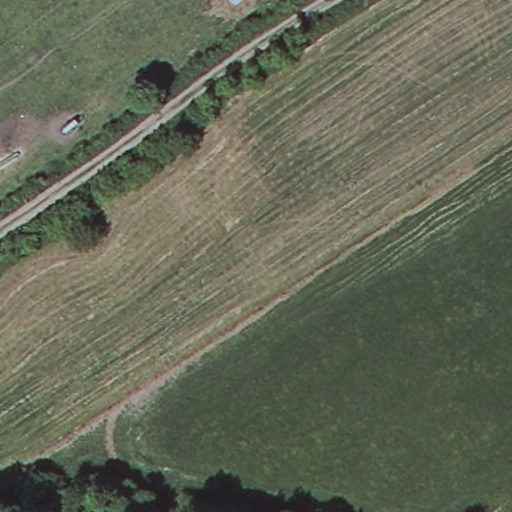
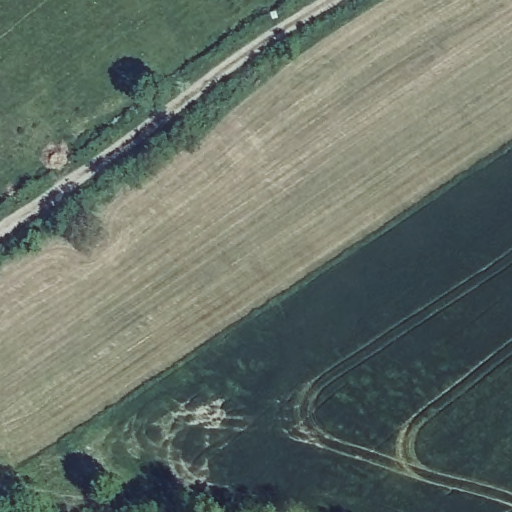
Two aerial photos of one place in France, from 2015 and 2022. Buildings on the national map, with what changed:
unchanged [(210,0),(228,0),(213,6),(210,0)]

